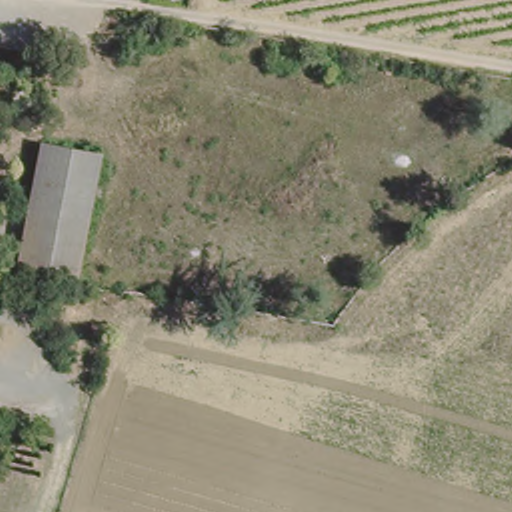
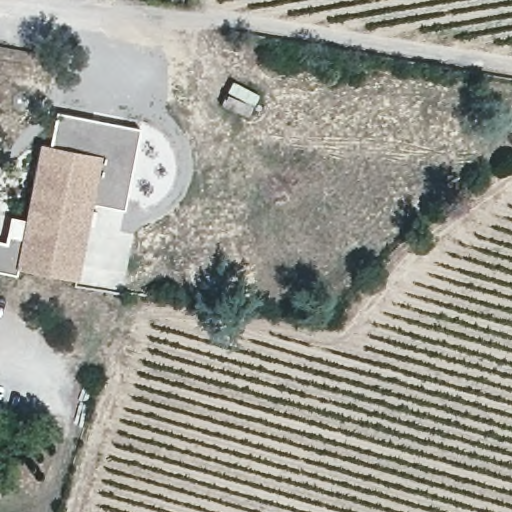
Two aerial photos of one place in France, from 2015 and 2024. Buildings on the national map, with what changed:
new [(57,112),(140,128),(125,209),(90,203),(97,154),(51,146),(57,112)]
unchanged [(16,267),(40,144),(97,154),(79,277),(16,267)]
new [(11,218),(25,220),(16,267),(15,275),(0,272),(0,243),(7,244),(11,218)]

